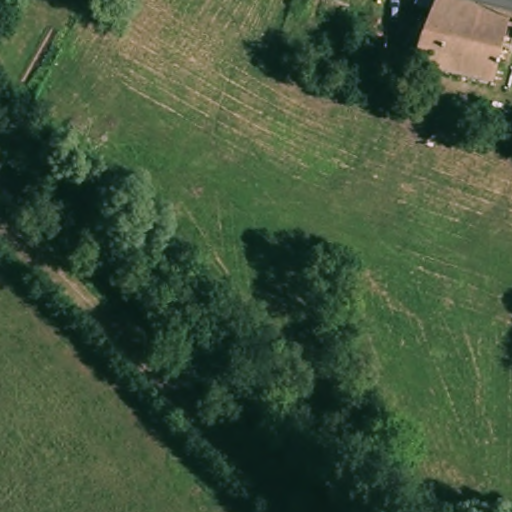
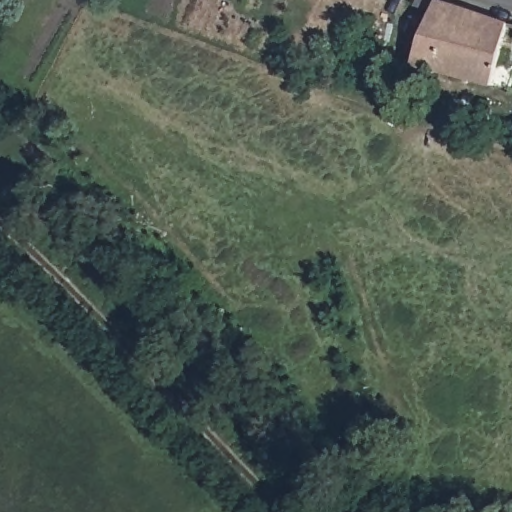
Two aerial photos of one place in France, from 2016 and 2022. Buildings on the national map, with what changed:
unchanged [(490,85),(406,64),(416,35),(437,0),(440,0),(512,25),(512,26),(490,85)]

